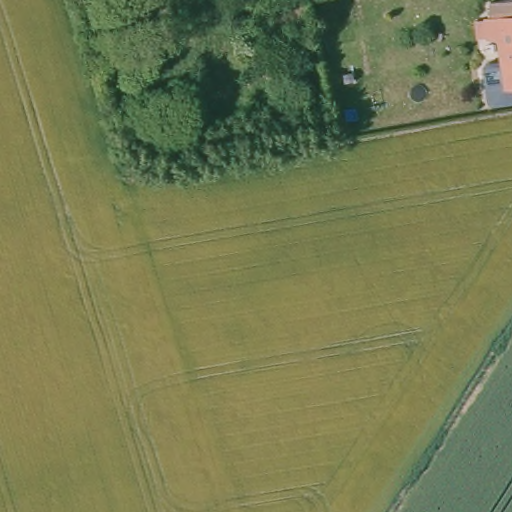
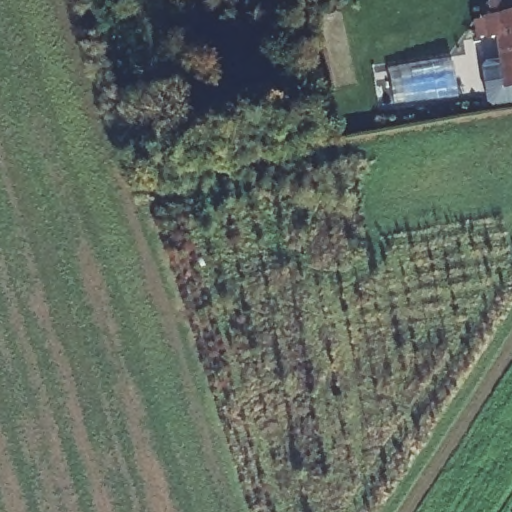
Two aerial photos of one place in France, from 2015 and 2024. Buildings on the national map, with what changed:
unchanged [(512,81),(508,82),(500,32),(490,33),(486,13),(512,9),(512,81)]

